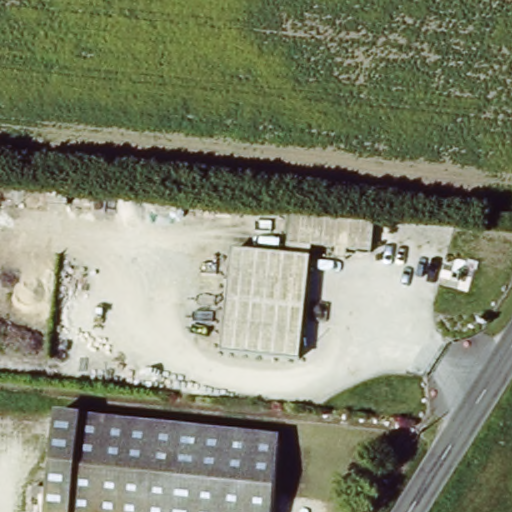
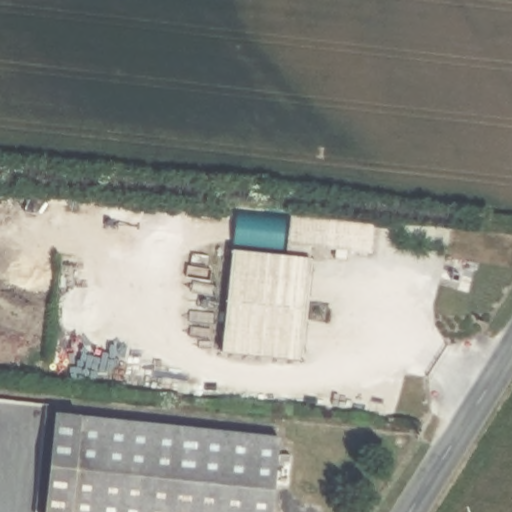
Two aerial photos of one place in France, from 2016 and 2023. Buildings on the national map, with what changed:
unchanged [(357,218),(355,248),(306,244),(305,259),(298,257),(299,245),(286,244),(288,213),(357,218)]
unchanged [(298,257),(305,259),(307,259),(300,357),(224,352),(231,252),(298,257)]
unchanged [(280,438),(271,512),(46,512),(56,411),(280,438)]

